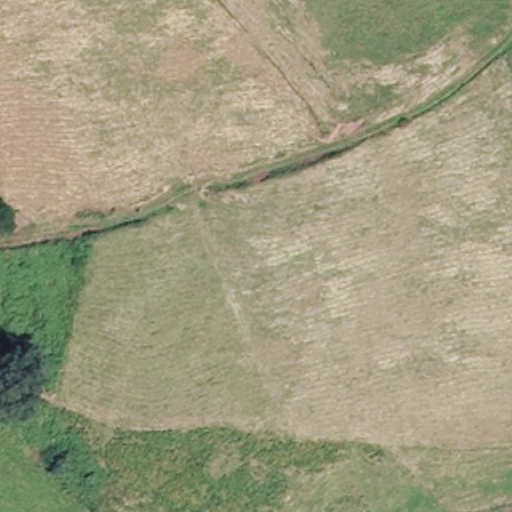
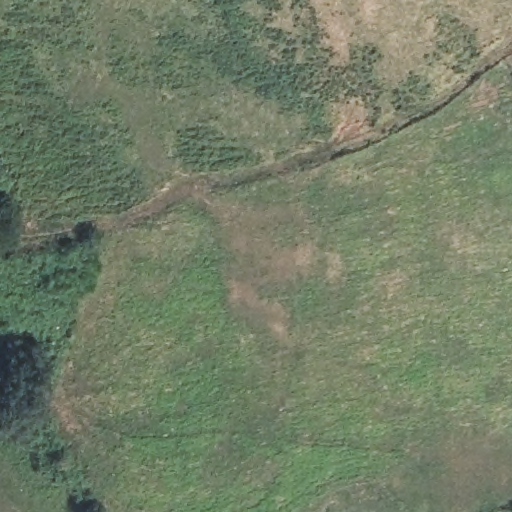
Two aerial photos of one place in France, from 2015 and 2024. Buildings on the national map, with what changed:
[]

